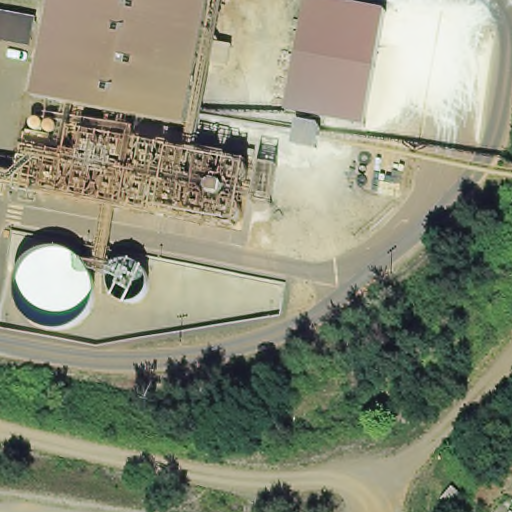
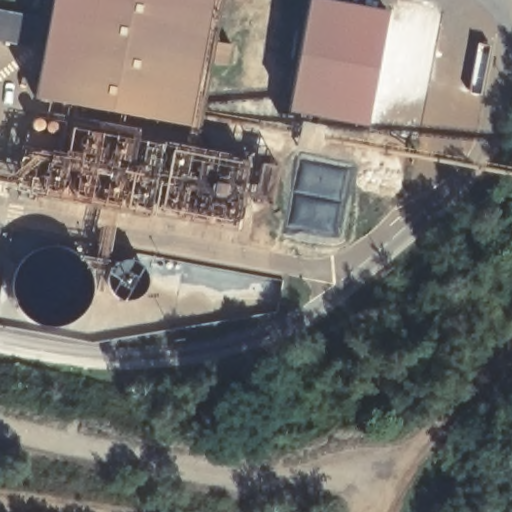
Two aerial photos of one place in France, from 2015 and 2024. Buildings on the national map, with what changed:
unchanged [(213,0),(188,129),(39,100),(56,0),(213,0)]
unchanged [(308,0),(389,10),(368,129),(290,120),(308,0)]
unchanged [(0,40),(0,16),(30,21),(26,44),(0,40)]
unchanged [(231,66),(216,64),(220,43),(235,45),(231,66)]
unchanged [(323,154),(298,150),(302,124),(327,129),(323,154)]

